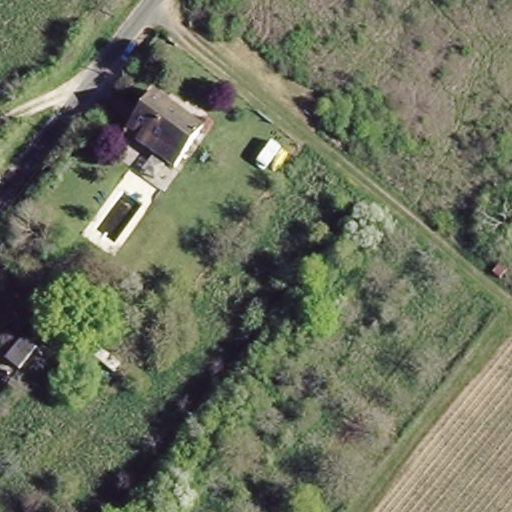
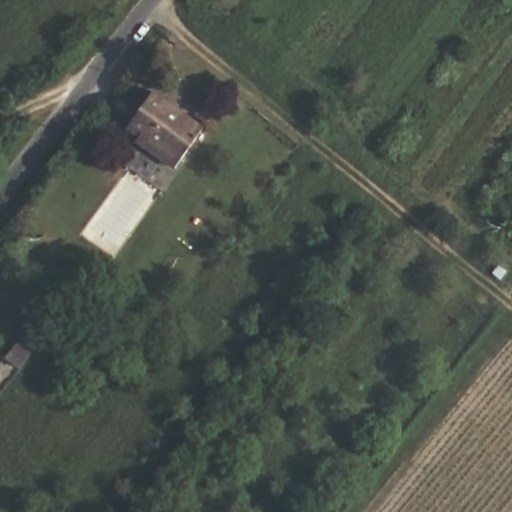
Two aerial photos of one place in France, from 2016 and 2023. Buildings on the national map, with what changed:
unchanged [(133,135),(136,132),(123,122),(148,89),(195,123),(199,127),(172,163),(167,160),(133,135)]
unchanged [(21,364),(8,354),(25,333),(38,343),(21,364)]

